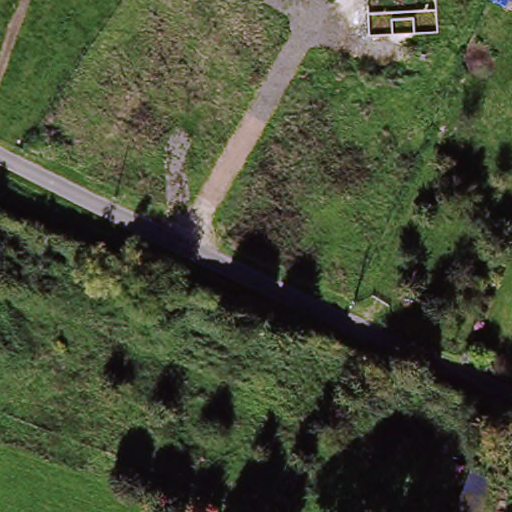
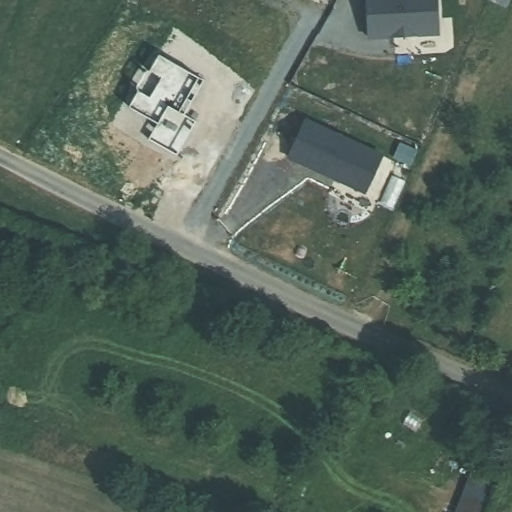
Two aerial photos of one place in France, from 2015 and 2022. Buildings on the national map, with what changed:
new [(440,33),(367,39),(364,0),(438,0),(440,33)]
new [(384,154),(365,194),(286,158),(306,116),(384,154)]
unchanged [(108,245),(153,263),(145,286),(99,268),(108,245)]

